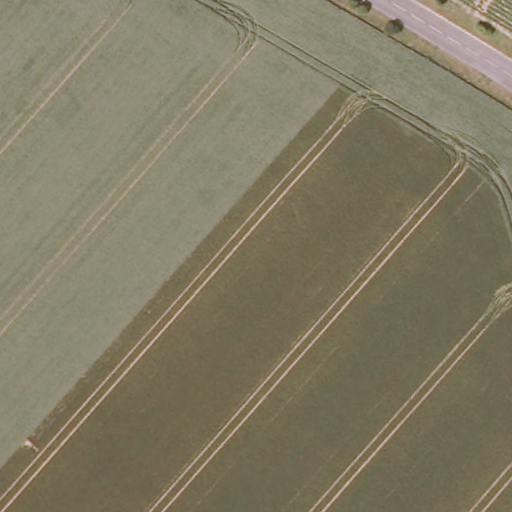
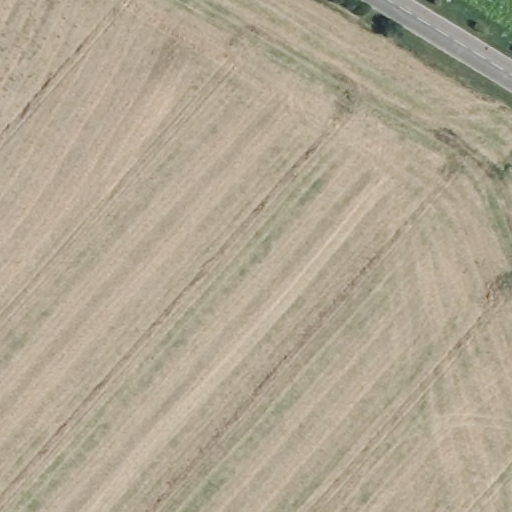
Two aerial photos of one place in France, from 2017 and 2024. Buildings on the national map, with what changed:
[]

